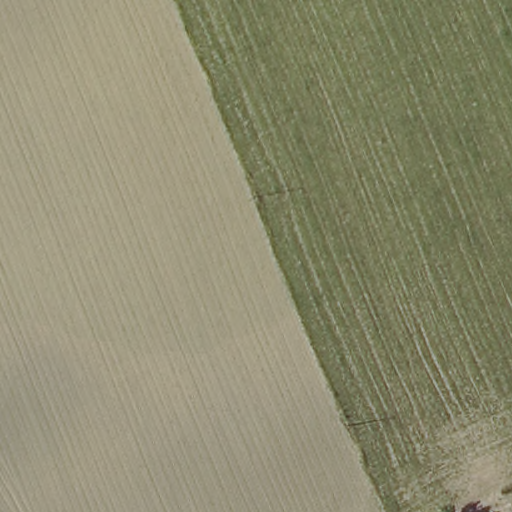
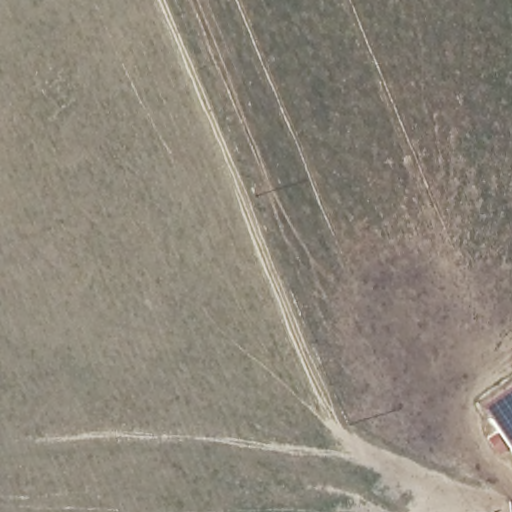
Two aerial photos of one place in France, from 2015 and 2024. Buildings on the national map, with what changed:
new [(512,379),(512,453),(478,402),(512,379)]

